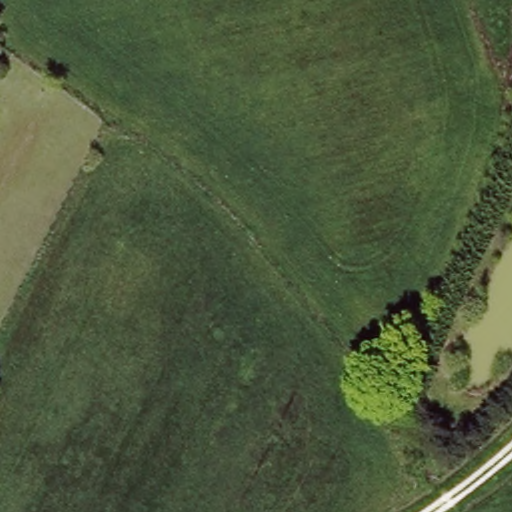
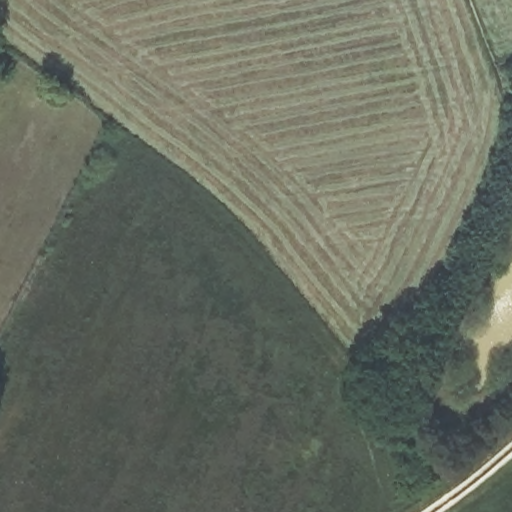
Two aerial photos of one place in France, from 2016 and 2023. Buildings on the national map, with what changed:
[]

